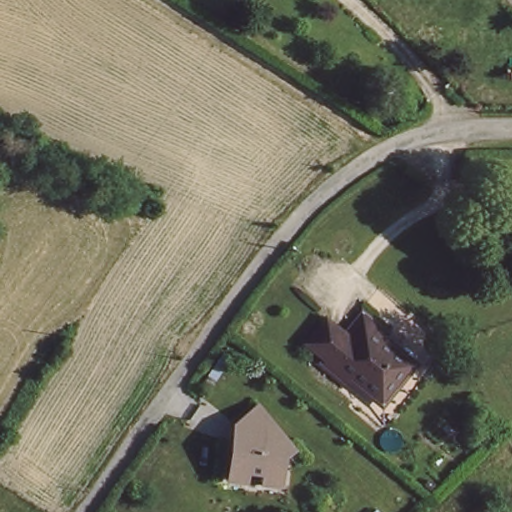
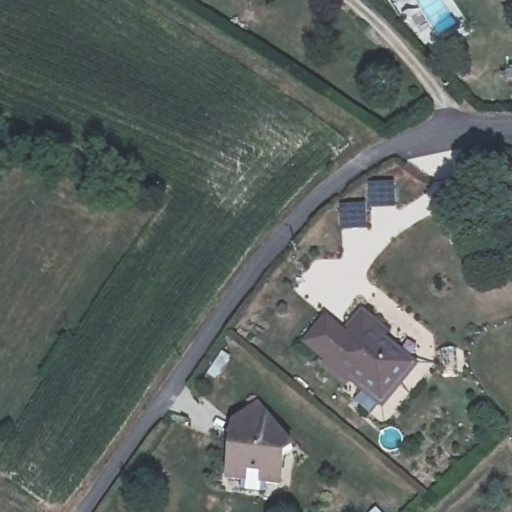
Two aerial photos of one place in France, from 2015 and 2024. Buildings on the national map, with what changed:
unchanged [(384,409),(347,376),(340,383),(319,366),(322,359),(305,344),(327,316),(345,330),(361,309),(417,365),(384,409)]
unchanged [(295,442),(287,450),(287,483),(267,483),(267,475),(252,475),(252,483),(228,480),(232,425),(256,404),(295,442)]

